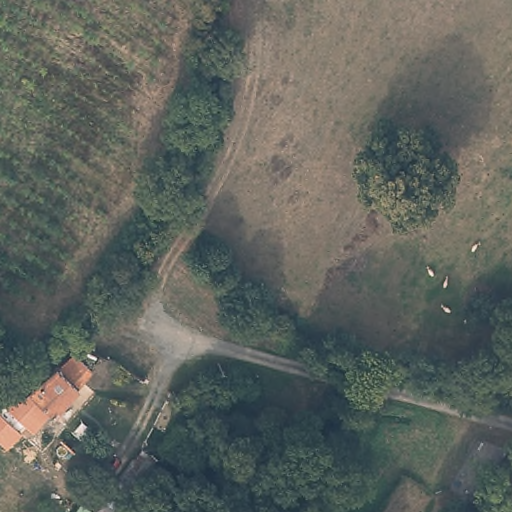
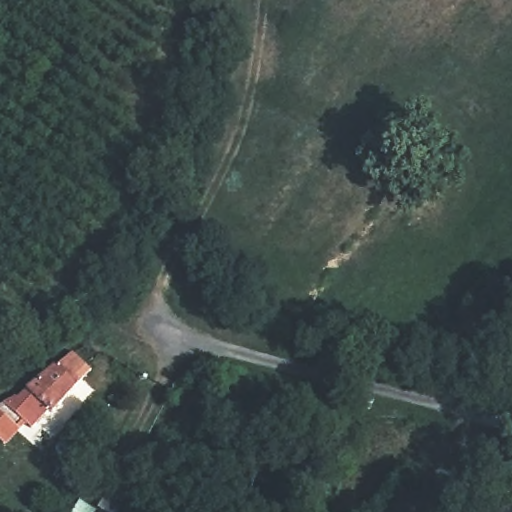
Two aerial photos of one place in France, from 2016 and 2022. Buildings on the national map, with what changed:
unchanged [(94,367),(55,410),(29,386),(74,350),(94,367)]
unchanged [(129,512),(128,512),(104,500),(142,446),(161,459),(129,512)]

